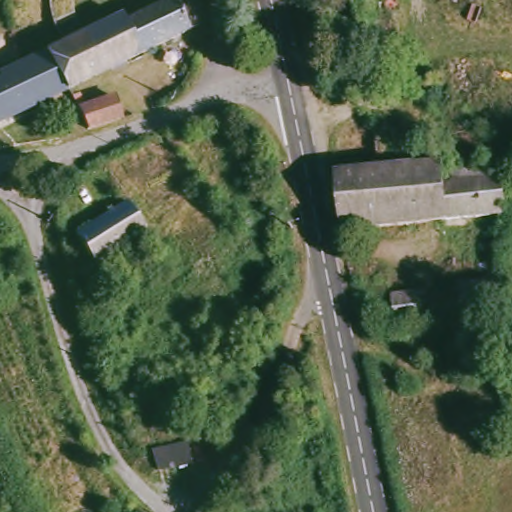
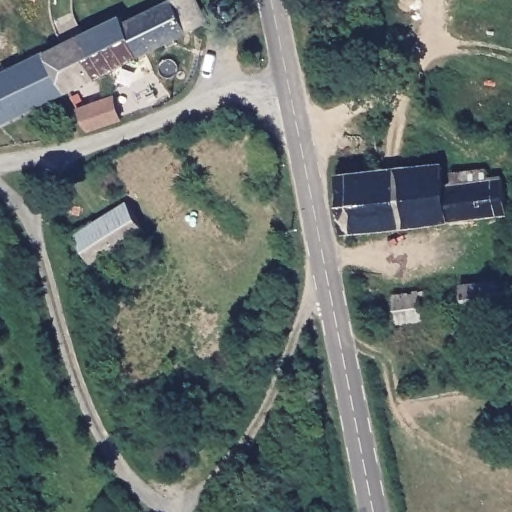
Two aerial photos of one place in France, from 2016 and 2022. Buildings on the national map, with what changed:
unchanged [(39,46),(110,12),(117,16),(153,0),(190,0),(198,19),(59,85),(39,46)]
unchanged [(0,114),(0,64),(10,59),(39,46),(59,85),(0,114)]
unchanged [(84,107),(115,98),(122,119),(90,128),(84,107)]
unchanged [(498,177),(502,213),(341,230),(333,173),(435,162),(440,182),(451,181),(450,170),(481,168),(484,178),(498,177)]
unchanged [(75,229),(86,221),(89,226),(128,202),(148,230),(98,260),(75,229)]
unchanged [(0,230),(0,210),(11,218),(0,230)]
unchanged [(423,292),(427,324),(394,328),(389,297),(423,292)]
unchanged [(485,303),(490,329),(459,334),(454,308),(485,303)]

